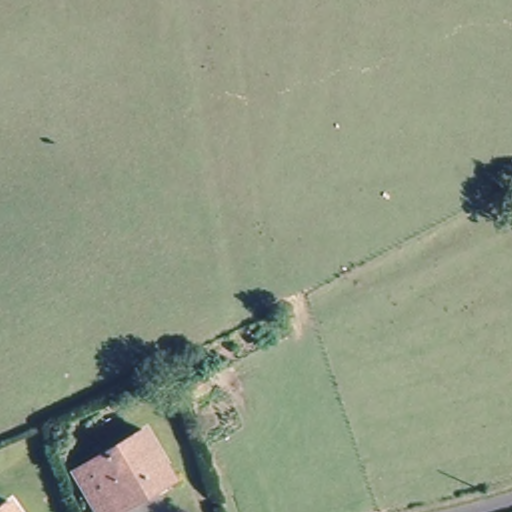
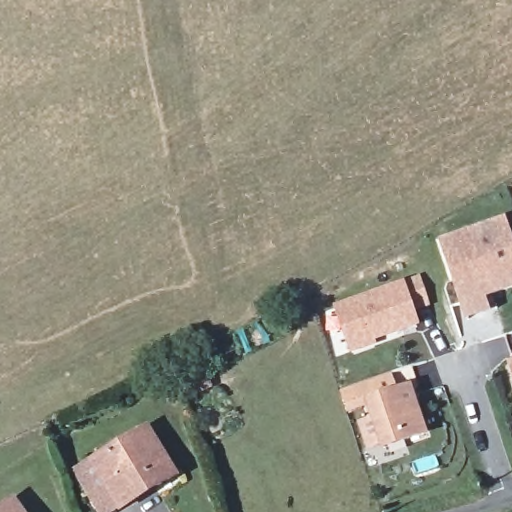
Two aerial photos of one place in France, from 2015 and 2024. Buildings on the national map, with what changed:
new [(437,241),(504,219),(512,240),(512,291),(485,298),(489,315),(464,322),(437,241)]
new [(429,307),(413,312),(419,331),(349,357),(331,305),(420,275),(429,307)]
new [(506,361),(512,359),(512,379),(506,361)]
new [(363,401),(411,384),(428,437),(381,452),(363,401)]
unchanged [(125,512),(89,512),(70,477),(148,426),(170,463),(178,478),(173,481),(157,492),(137,504),(125,512)]
unchanged [(0,511),(13,502),(19,512),(0,512),(0,511)]

